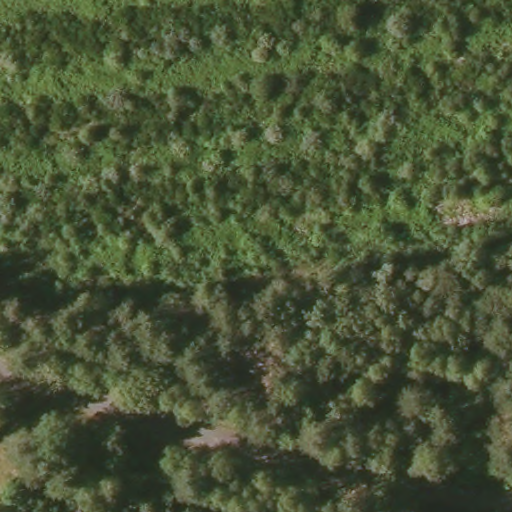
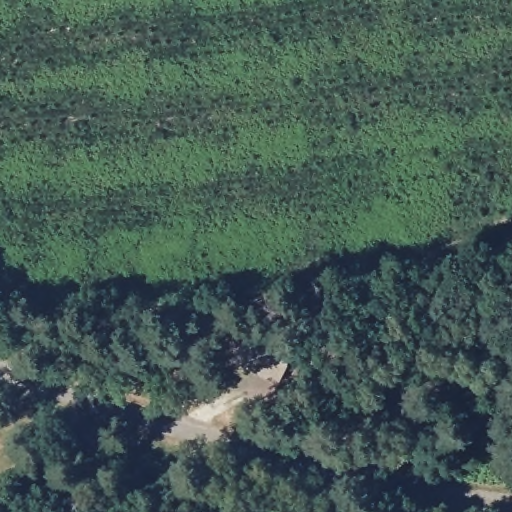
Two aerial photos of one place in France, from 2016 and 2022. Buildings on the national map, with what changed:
unchanged [(250,329),(300,348),(283,386),(235,363),(250,329)]

